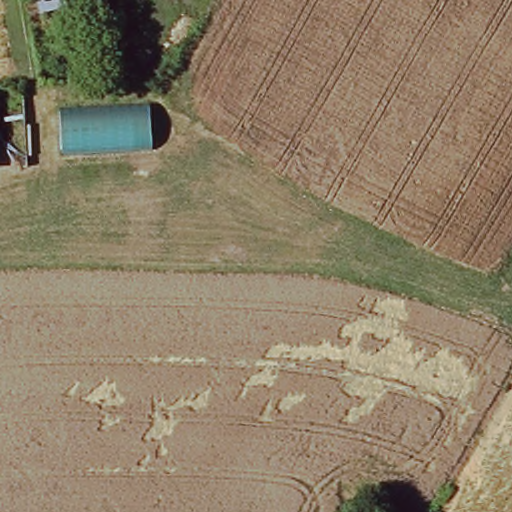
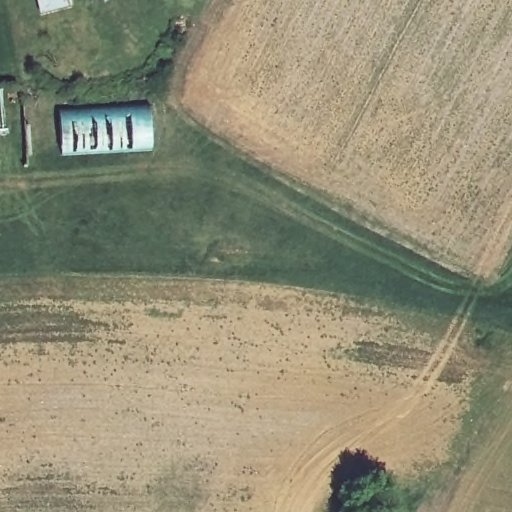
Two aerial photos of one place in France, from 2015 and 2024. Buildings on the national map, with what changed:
unchanged [(76,0),(77,7),(47,13),(43,0),(76,0)]
unchanged [(158,147),(65,154),(61,112),(152,106),(158,147)]

